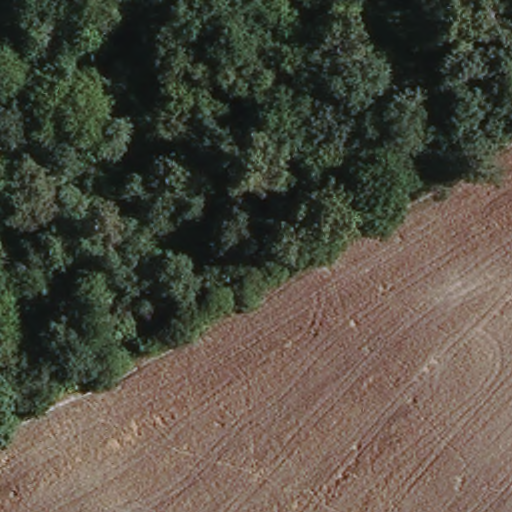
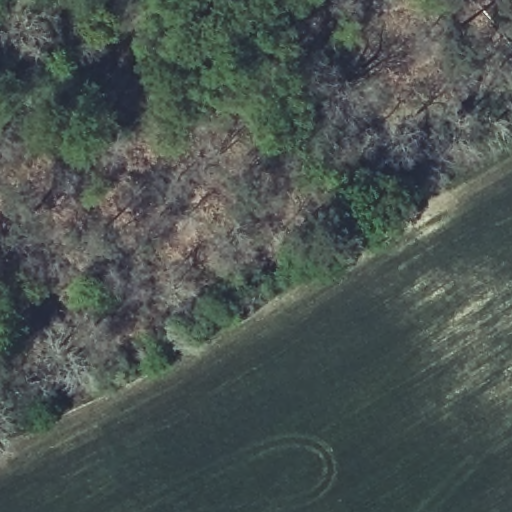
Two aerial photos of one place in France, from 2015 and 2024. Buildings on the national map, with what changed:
[]

